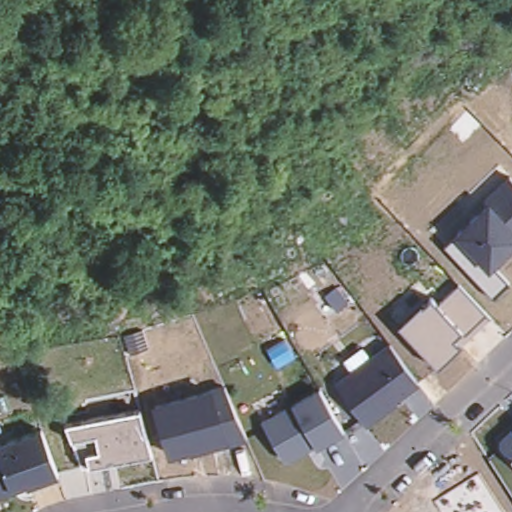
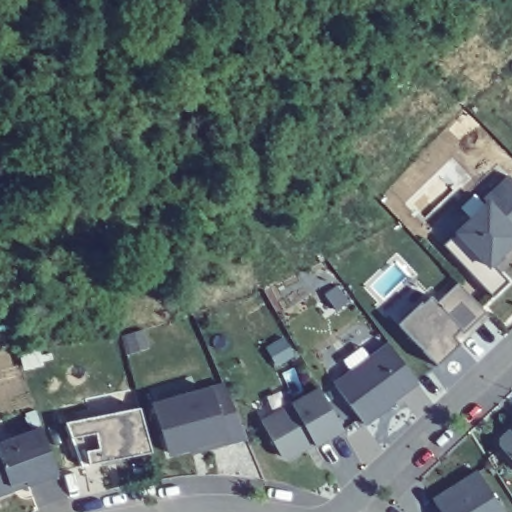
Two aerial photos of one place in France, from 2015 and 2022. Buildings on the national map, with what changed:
unchanged [(512,245),(494,263),(508,281),(493,293),(457,254),(469,242),(458,231),(489,204),(487,200),(510,177),(512,180),(512,245)]
unchanged [(398,323),(421,302),(423,304),(432,296),(437,302),(459,282),(490,314),(460,342),(437,363),(398,323)]
unchanged [(335,381),(389,340),(420,385),(366,425),(335,381)]
unchanged [(247,437),(170,456),(155,405),(223,386),(247,437)]
unchanged [(344,432),(318,448),(315,445),(286,462),(265,419),(318,387),(344,432)]
unchanged [(150,452),(87,465),(68,425),(138,410),(150,452)]
unchanged [(512,426),(512,458),(496,441),(512,426)]
unchanged [(62,472),(0,493),(0,442),(42,427),(62,472)]
new [(479,472),(505,512),(441,512),(433,500),(479,472)]

